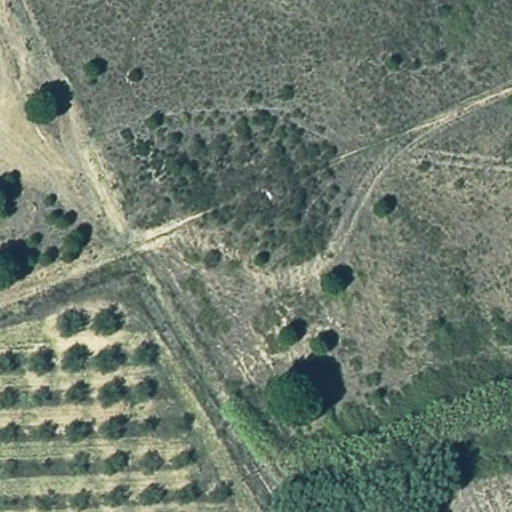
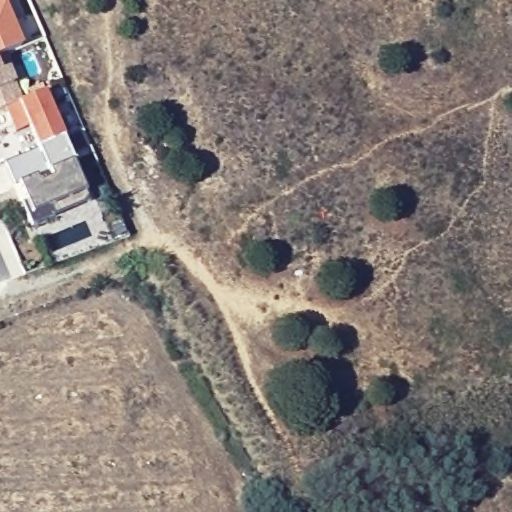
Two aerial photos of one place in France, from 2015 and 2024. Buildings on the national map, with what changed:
new [(0,0),(1,0),(4,4),(22,47),(0,57),(0,0)]
new [(4,108),(0,110),(0,70),(0,71),(9,68),(15,84),(19,93),(39,85),(42,92),(19,102),(4,108)]
new [(37,149),(27,124),(12,130),(4,108),(19,102),(42,92),(45,91),(62,139),(37,149)]
new [(37,149),(62,139),(72,162),(84,192),(89,203),(30,225),(3,163),(37,149)]
unchanged [(391,505),(378,512),(344,512),(342,509),(384,490),(391,505)]

